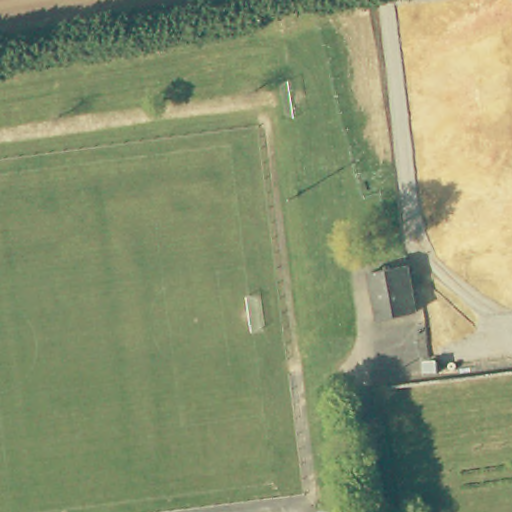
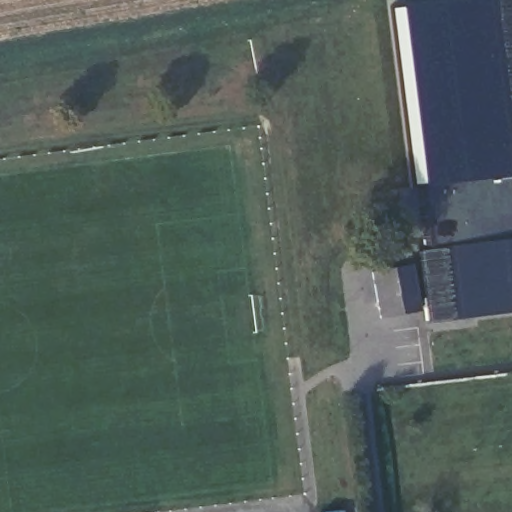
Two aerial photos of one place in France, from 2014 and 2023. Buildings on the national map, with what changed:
new [(447,0),(512,0),(512,313),(426,324),(418,250),(426,250),(421,189),(415,189),(395,6),(447,0)]
unchanged [(410,264),(418,310),(382,316),(374,270),(410,264)]

